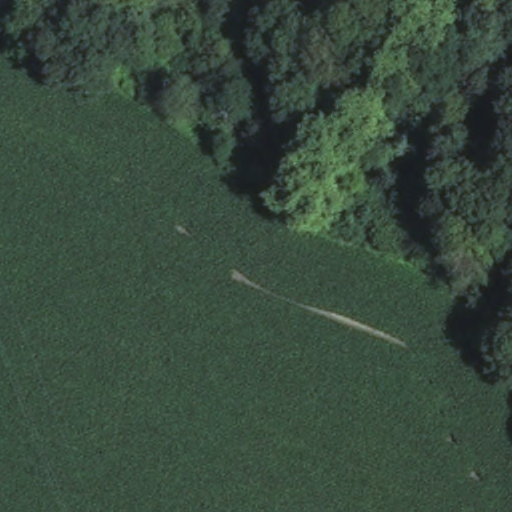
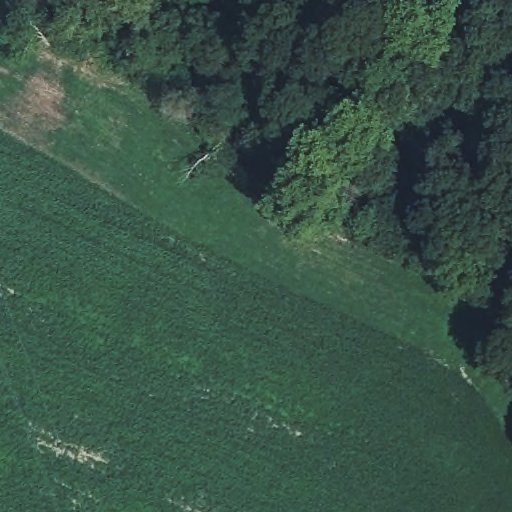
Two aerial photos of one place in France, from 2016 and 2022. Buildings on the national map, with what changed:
[]

